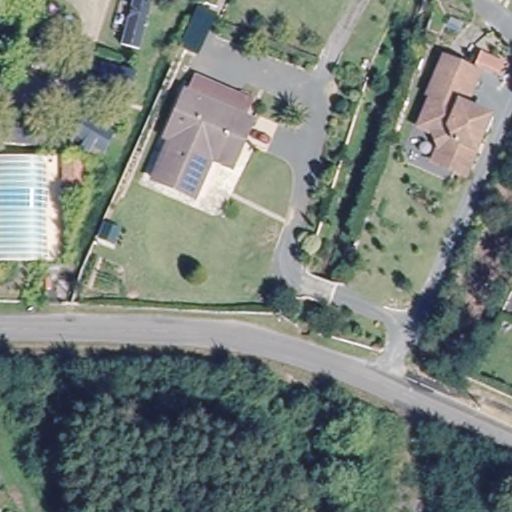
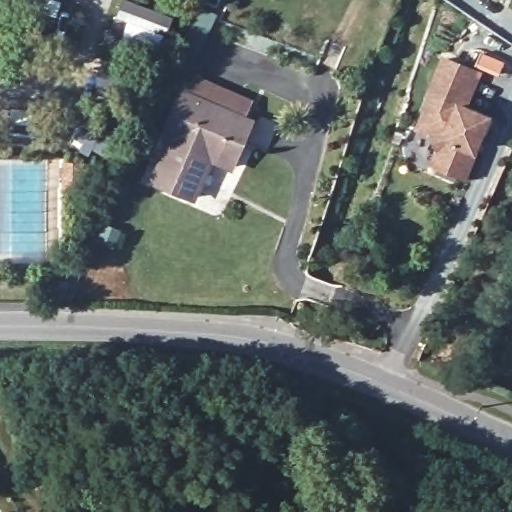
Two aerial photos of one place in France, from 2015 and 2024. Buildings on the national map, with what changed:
unchanged [(209,24),(203,36),(189,64),(180,61),(200,20),(209,24)]
unchanged [(467,103),(491,114),(468,169),(437,157),(445,132),(423,125),(436,92),(432,90),(447,55),(480,69),(467,103)]
unchanged [(215,165),(198,201),(151,182),(167,145),(164,144),(186,94),(190,96),(197,80),(253,103),(246,117),(253,122),(244,142),(231,170),(215,165)]
unchanged [(81,174),(64,174),(65,151),(81,151),(81,174)]

